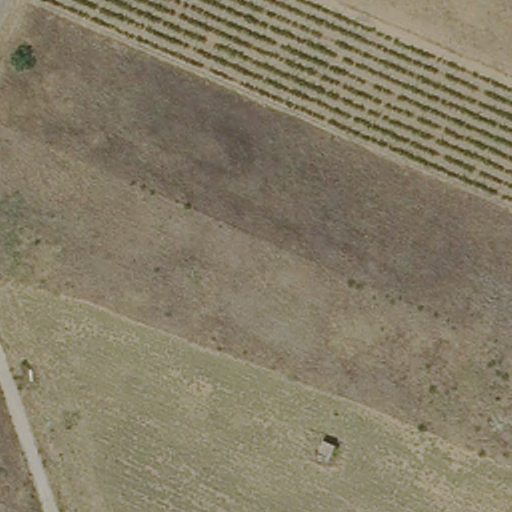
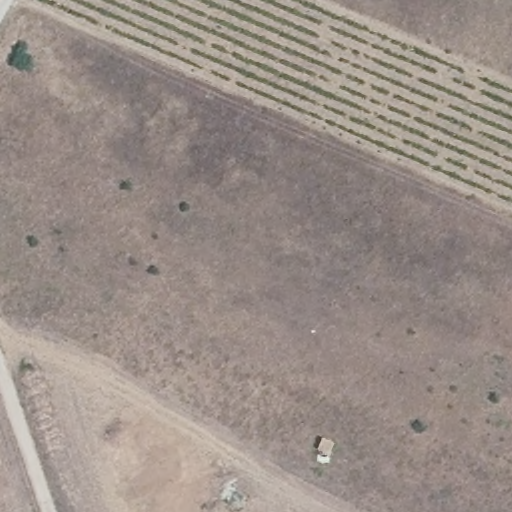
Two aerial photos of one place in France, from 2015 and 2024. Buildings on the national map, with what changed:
unchanged [(323,437),(340,444),(333,458),(318,452),(323,437)]

